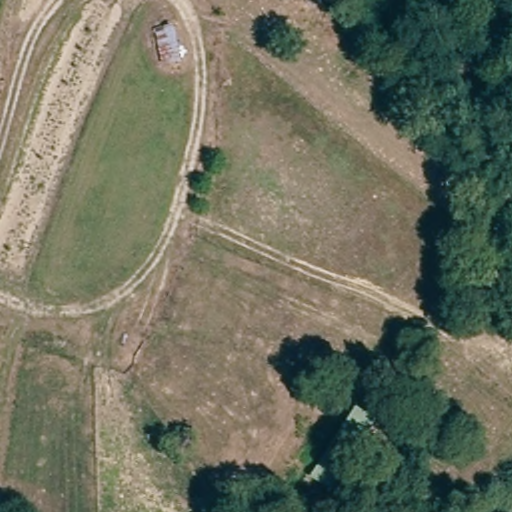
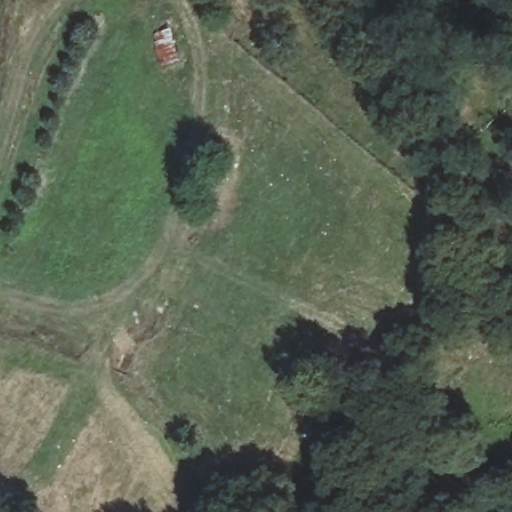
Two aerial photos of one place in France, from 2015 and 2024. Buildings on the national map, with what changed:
unchanged [(306,476),(353,405),(374,419),(329,490),(306,476)]

